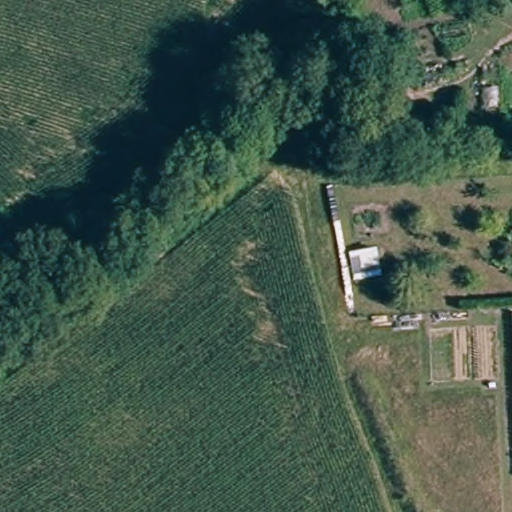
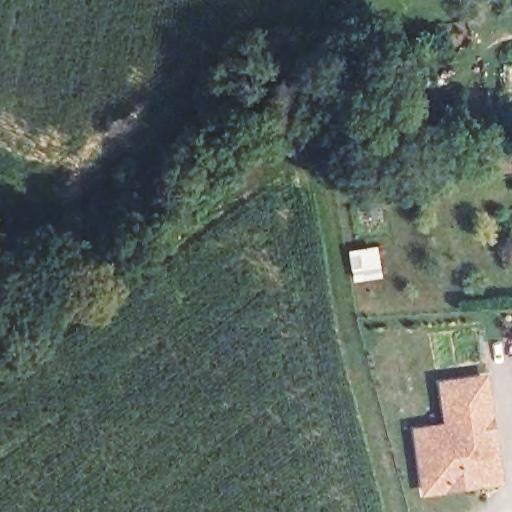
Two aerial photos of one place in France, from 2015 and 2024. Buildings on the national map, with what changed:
unchanged [(365,280),(361,281),(350,283),(344,255),(354,253),(360,252),(365,280)]
new [(427,494),(417,433),(439,430),(447,428),(440,387),(485,380),(493,426),(494,432),(500,467),(503,482),(452,490),(427,494)]

